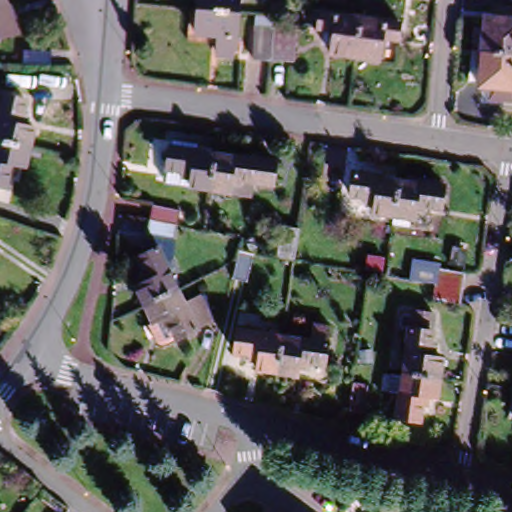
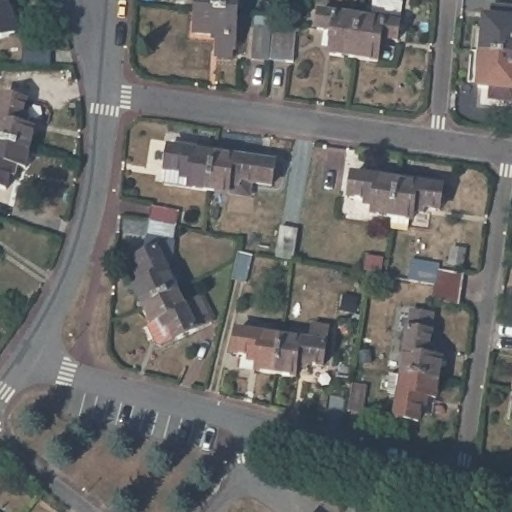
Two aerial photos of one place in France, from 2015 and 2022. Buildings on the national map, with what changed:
unchanged [(238,20),(199,17),(200,0),(240,0),(238,20)]
unchanged [(0,43),(0,4),(11,39),(0,43)]
unchanged [(498,20),(498,13),(512,14),(512,57),(482,54),(486,19),(498,20)]
unchanged [(331,59),(333,34),(321,33),(322,15),(361,20),(355,62),(331,59)]
unchanged [(238,20),(235,56),(234,56),(232,64),(217,63),(218,44),(197,41),(199,17),(238,20)]
unchanged [(361,20),(401,25),(398,43),(382,41),(379,65),(355,62),(361,20)]
unchanged [(268,62),(252,60),(255,26),(272,28),(268,62)]
unchanged [(273,29),(297,31),(293,63),(271,62),(273,29)]
unchanged [(24,51),(51,53),(51,66),(23,66),(24,51)]
unchanged [(491,99),(492,91),(480,90),(482,54),(512,57),(512,92),(507,92),(507,101),(491,99)]
unchanged [(25,81),(22,97),(27,98),(26,108),(34,110),(30,129),(0,123),(0,90),(3,77),(25,81)]
unchanged [(11,145),(6,170),(0,169),(0,123),(30,129),(25,149),(11,145)]
unchanged [(210,192),(190,190),(165,186),(167,172),(170,150),(214,156),(210,192)]
unchanged [(229,195),(210,192),(214,156),(275,165),(272,187),(257,185),(255,199),(229,195)]
unchanged [(390,211),(389,218),(370,215),(371,203),(347,199),(350,176),(394,182),(390,211)]
unchanged [(414,178),(422,179),(437,181),(436,188),(438,188),(435,212),(411,209),(409,221),(389,218),(390,211),(394,182),(413,184),(414,178)]
unchanged [(293,263),(277,260),(281,230),(297,232),(293,263)]
unchanged [(459,242),(471,244),(468,259),(457,257),(459,242)]
unchanged [(132,289),(144,282),(134,260),(137,258),(152,251),(160,266),(172,291),(141,306),(132,289)]
unchanged [(234,262),(236,253),(254,256),(247,285),(230,282),(234,262)]
unchanged [(432,303),(435,287),(435,285),(422,283),(408,281),(408,280),(411,266),(437,271),(463,276),(462,291),(459,307),(432,303)]
unchanged [(145,327),(149,325),(141,306),(172,291),(179,304),(193,296),(207,324),(172,341),(156,349),(145,327)]
unchanged [(396,386),(407,325),(428,329),(422,370),(436,373),(432,392),(396,386)]
unchanged [(271,339),(301,343),(303,327),(320,330),(314,368),(287,364),(285,377),(266,374),(271,339)]
unchanged [(247,371),(249,358),(225,354),(227,332),(271,339),(266,374),(247,371)]
unchanged [(351,386),(368,388),(364,416),(347,413),(351,386)]
unchanged [(430,412),(416,409),(412,435),(390,431),(393,408),(382,405),(384,388),(396,390),(396,386),(432,392),(430,412)]

